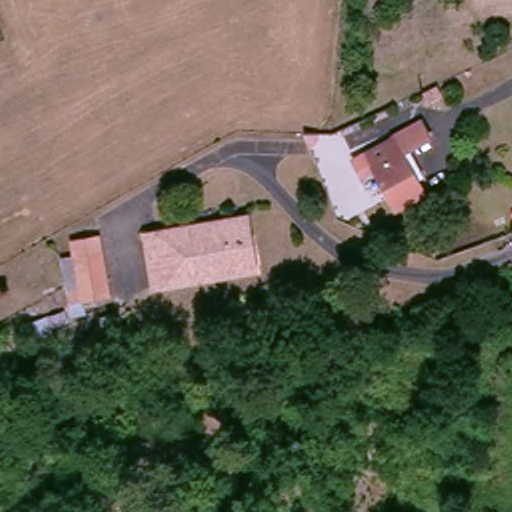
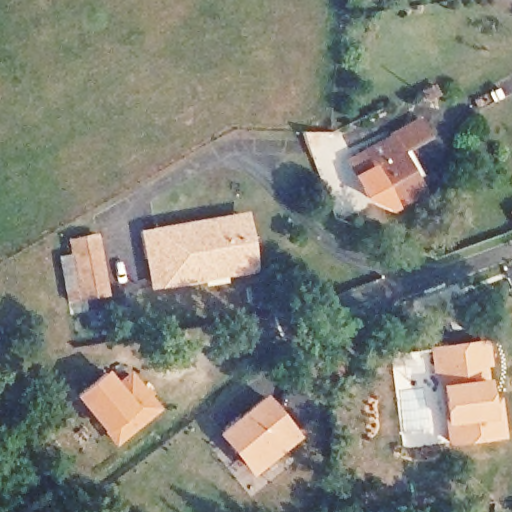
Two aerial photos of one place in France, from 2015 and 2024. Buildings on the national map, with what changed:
unchanged [(416,176),(423,190),(395,206),(372,166),(360,173),(351,157),(392,135),(391,132),(418,117),(427,134),(404,146),(420,174),(416,176)]
unchanged [(159,282),(152,233),(251,219),(259,268),(159,282)]
unchanged [(109,293),(78,295),(72,245),(105,243),(109,293)]
new [(446,425),(440,383),(439,370),(433,371),(430,346),(488,340),(490,365),(486,366),(491,397),(500,396),(506,437),(448,444),(446,425)]
new [(105,432),(75,395),(106,370),(115,381),(130,371),(160,408),(116,445),(105,432)]
new [(218,432),(265,394),(299,435),(252,475),(218,432)]

